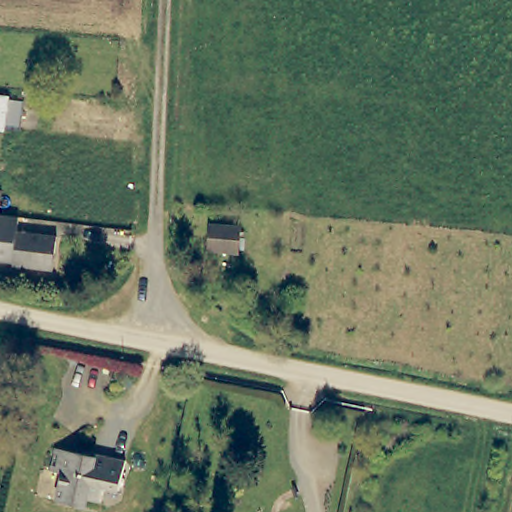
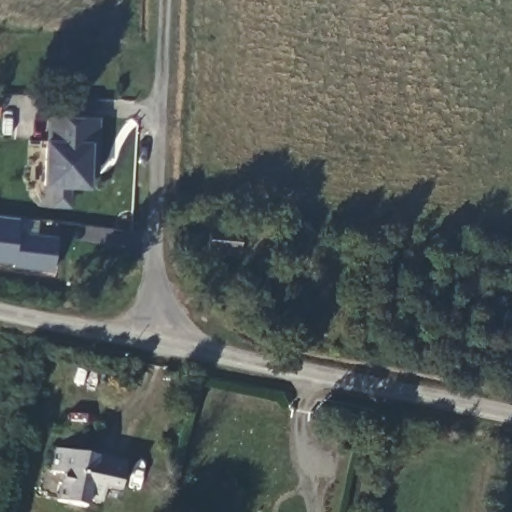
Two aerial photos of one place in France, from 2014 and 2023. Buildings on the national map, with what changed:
new [(57,205),(57,186),(50,185),(51,142),(52,119),(67,120),(67,117),(105,118),(104,145),(102,175),(95,174),(94,187),(75,186),(74,205),(57,205)]
unchanged [(0,211),(0,196),(5,197),(15,197),(14,209),(4,207),(2,211),(0,211)]
unchanged [(20,232),(60,239),(56,272),(16,267),(16,261),(1,260),(0,259),(0,215),(1,215),(8,216),(23,218),(20,232)]
unchanged [(242,256),(212,254),(215,226),(244,228),(242,256)]
unchanged [(95,455),(95,452),(126,459),(120,495),(110,492),(111,487),(107,487),(105,501),(90,497),(87,507),(59,502),(65,471),(52,468),(57,445),(95,455)]

